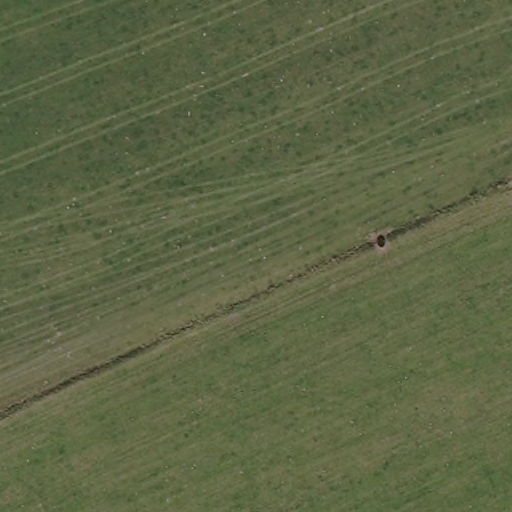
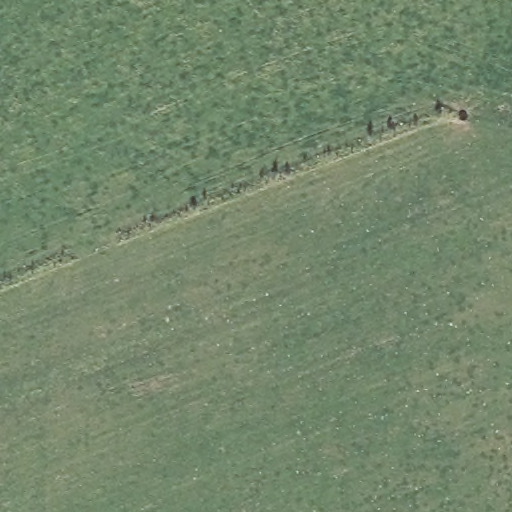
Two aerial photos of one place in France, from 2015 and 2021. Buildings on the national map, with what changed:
[]

